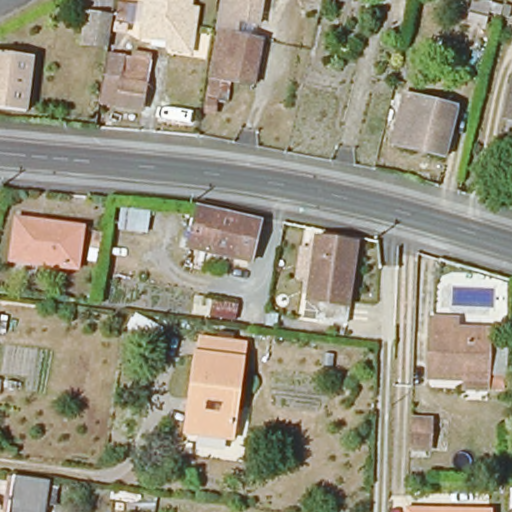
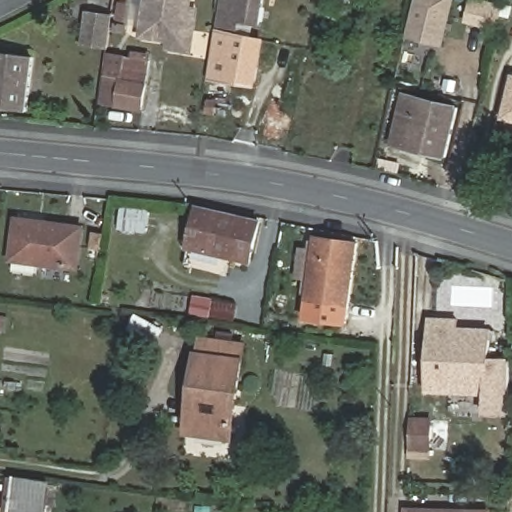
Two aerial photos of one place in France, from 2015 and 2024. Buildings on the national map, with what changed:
unchanged [(193,12),(190,35),(176,44),(170,43),(146,40),(152,0),(195,0),(193,12)]
unchanged [(257,29),(237,26),(235,39),(259,44),(252,87),(208,79),(220,0),(261,0),(257,29)]
unchanged [(352,8),(323,0),(355,0),(352,8)]
new [(444,47),(405,38),(415,0),(455,0),(444,47)]
unchanged [(504,5),(497,25),(463,17),(468,0),(481,0),(504,5)]
unchanged [(109,14),(104,48),(82,45),(87,11),(109,14)]
unchanged [(30,63),(21,117),(0,113),(0,57),(30,63)]
unchanged [(137,109),(113,105),(121,58),(145,63),(137,109)]
unchanged [(511,89),(512,86),(512,121),(503,119),(511,89)]
unchanged [(445,160),(391,147),(401,98),(456,110),(445,160)]
unchanged [(190,248),(199,208),(259,221),(250,262),(190,248)]
unchanged [(77,271),(11,263),(16,221),(81,230),(77,271)]
unchanged [(95,249),(85,248),(87,232),(97,234),(95,249)]
unchanged [(362,244),(348,321),(306,315),(313,281),(300,279),(305,249),(318,251),(321,237),(362,244)]
unchanged [(461,394),(461,382),(430,382),(430,322),(456,322),(456,331),(487,331),(487,375),(487,382),(487,394),(461,394)]
unchanged [(195,395),(200,352),(203,352),(205,340),(245,344),(232,438),(197,434),(190,433),(195,395)]
unchanged [(430,420),(428,450),(410,449),(411,420),(430,420)]
unchanged [(42,512),(5,512),(10,477),(46,482),(42,512)]
unchanged [(476,512),(403,512),(403,510),(476,512)]

